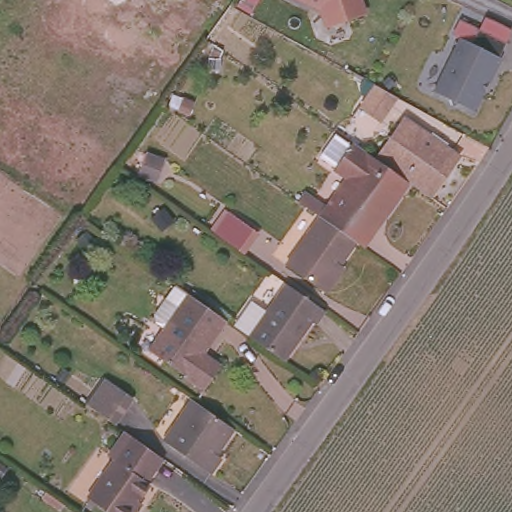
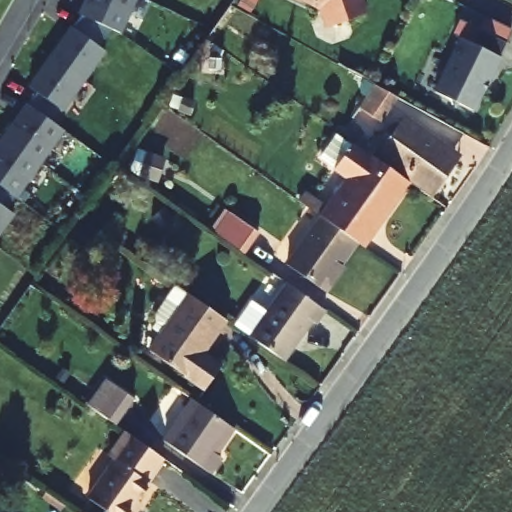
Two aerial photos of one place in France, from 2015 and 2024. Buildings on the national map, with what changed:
new [(118,36),(51,127),(61,133),(5,207),(12,210),(0,226),(0,143),(40,90),(29,80),(80,20),(89,0),(133,0),(118,36)]
unchanged [(318,11),(296,0),(365,0),(370,14),(326,28),(318,11)]
unchanged [(431,90),(461,20),(478,27),(483,14),(512,28),(476,112),(431,90)]
unchanged [(399,96),(381,120),(361,105),(376,84),(399,96)]
unchanged [(404,114),(454,150),(447,162),(451,165),(428,196),(409,182),(372,157),(404,114)]
unchanged [(409,182),(361,246),(356,243),(319,216),(347,178),(333,168),(352,142),(372,157),(409,182)]
unchanged [(266,225),(245,253),(224,239),(246,210),(266,225)]
unchanged [(322,291),(286,264),(319,216),(356,243),(322,291)]
unchanged [(324,311),(314,324),(311,322),(283,361),(236,327),(253,302),(268,313),(288,284),(324,311)]
unchanged [(231,325),(221,340),(218,338),(204,356),(226,372),(208,395),(154,356),(171,334),(161,328),(161,320),(183,290),(231,325)]
unchanged [(133,400),(114,424),(89,406),(107,381),(133,400)]
unchanged [(233,428),(216,454),(221,457),(209,474),(163,441),(193,400),(233,428)]
unchanged [(149,487),(153,490),(138,512),(139,512),(101,512),(90,505),(119,465),(114,460),(131,437),(166,463),(149,487)]

